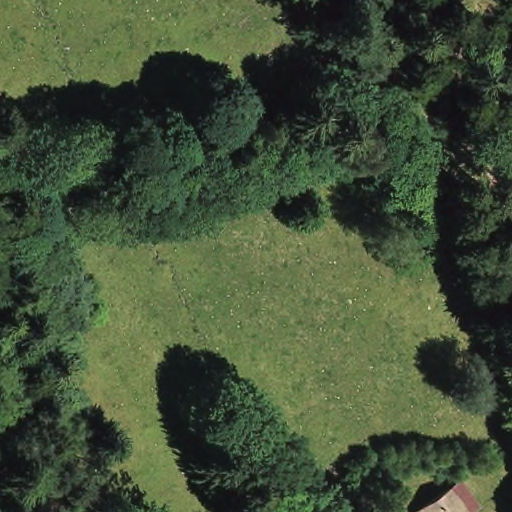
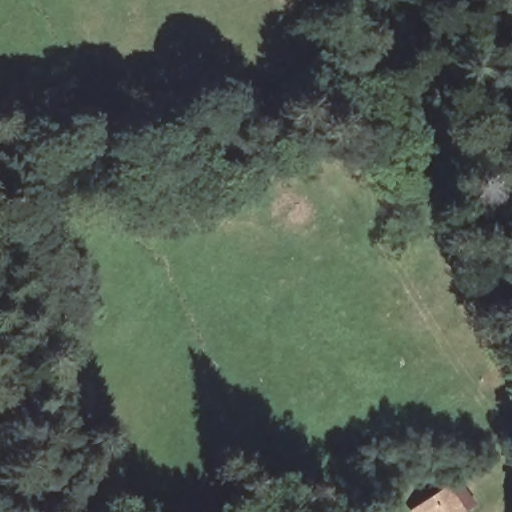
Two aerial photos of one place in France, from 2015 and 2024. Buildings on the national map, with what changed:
unchanged [(419,508),(454,484),(470,507),(463,512),(422,512),(419,508)]

